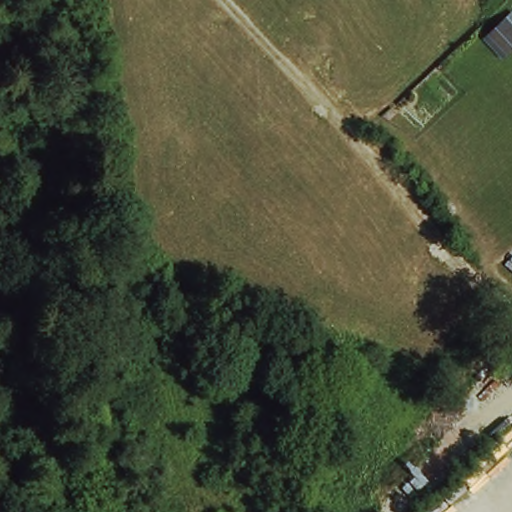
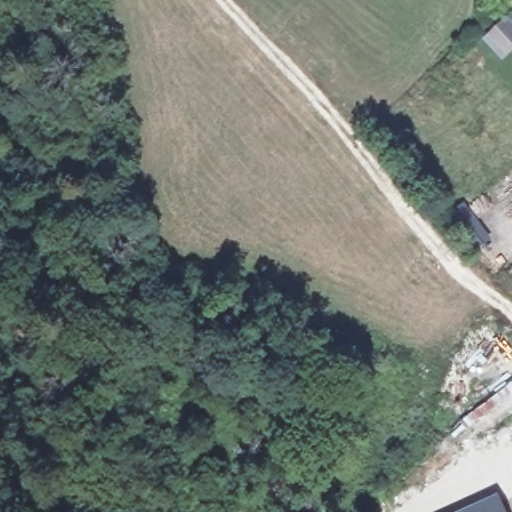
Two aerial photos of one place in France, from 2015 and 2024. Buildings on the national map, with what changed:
new [(507,512),(453,512),(498,492),(507,512)]

